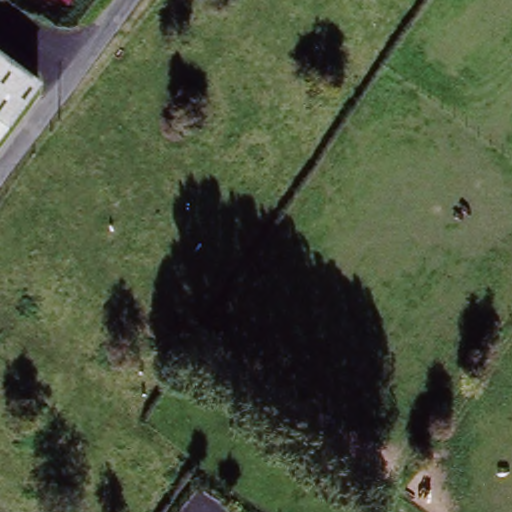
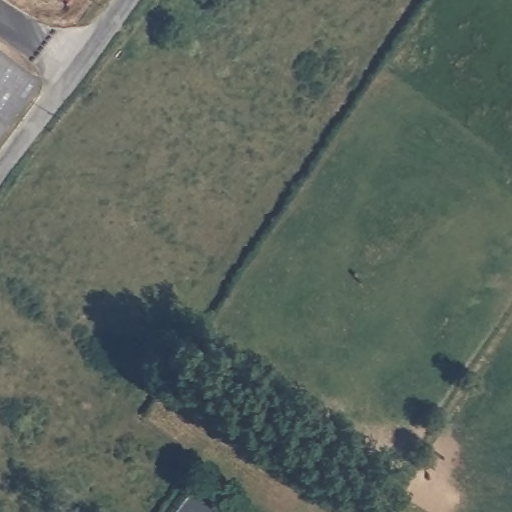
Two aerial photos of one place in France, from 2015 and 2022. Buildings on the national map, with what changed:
unchanged [(20,74),(0,103),(0,56),(21,72),(20,74)]

